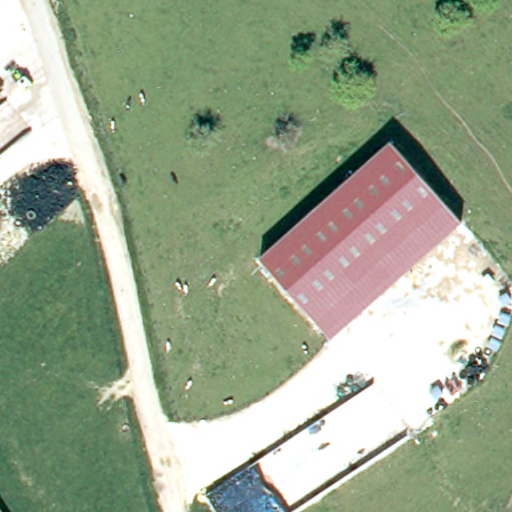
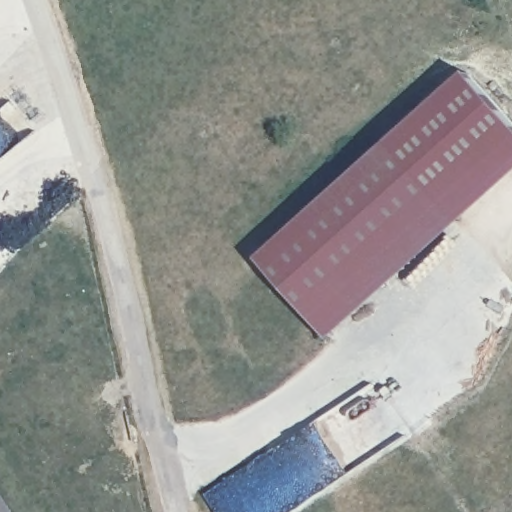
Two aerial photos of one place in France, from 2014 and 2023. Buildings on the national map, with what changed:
new [(512,120),(512,180),(462,224),(391,143),(470,72),(512,120)]
unchanged [(462,224),(332,340),(260,258),(391,143),(462,224)]
unchanged [(5,512),(0,512),(0,504),(5,512)]

